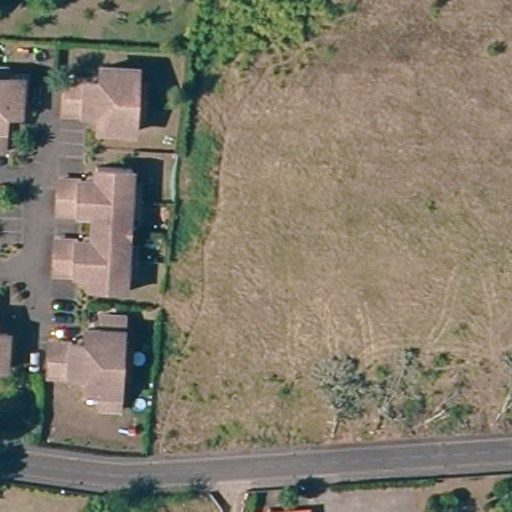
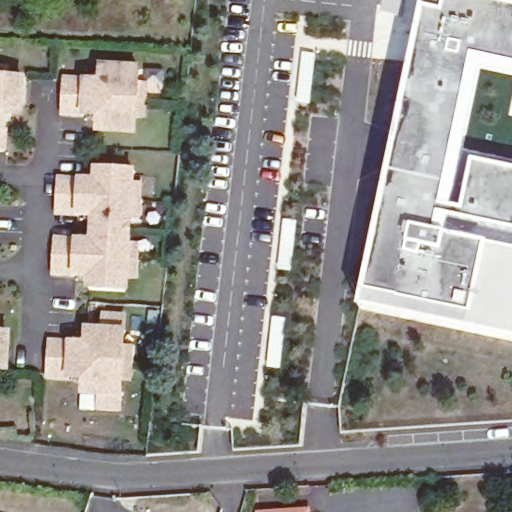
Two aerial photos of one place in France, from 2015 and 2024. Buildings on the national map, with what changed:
new [(359,308),(424,0),(485,0),(512,6),(512,75),(481,68),(452,209),(463,212),(473,163),(512,172),(512,340),(359,308)]
unchanged [(150,119),(141,119),(140,134),(105,132),(106,117),(66,115),(68,82),(107,84),(108,69),(143,71),(143,87),(151,87),(150,119)]
unchanged [(12,80),(28,81),(27,84),(25,117),(10,116),(8,154),(0,154),(0,71),(13,72),(12,80)]
unchanged [(131,275),(131,290),(95,288),(96,273),(57,270),(59,238),(98,240),(100,212),(61,209),(62,177),(101,179),(102,164),(138,166),(136,181),(146,181),(143,213),(135,213),(133,243),(142,243),(140,275),(131,275)]
unchanged [(131,382),(129,411),(107,410),(108,396),(94,395),(95,380),(56,378),(58,345),(97,348),(98,333),(111,333),(112,319),(134,320),(133,350),(141,350),(139,382),(131,382)]
unchanged [(6,367),(0,367),(0,331),(8,332),(6,367)]
unchanged [(301,512),(254,512),(254,509),(301,506),(301,512)]

